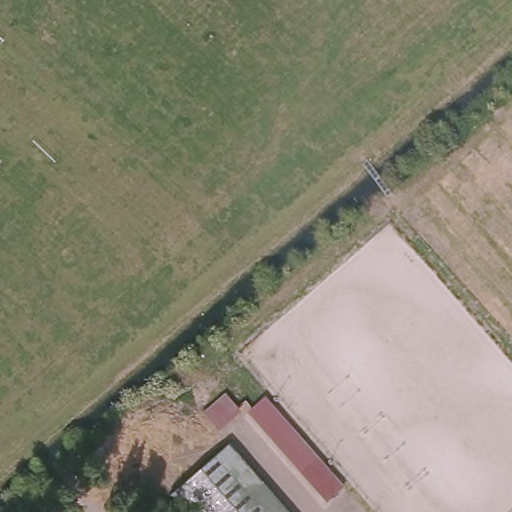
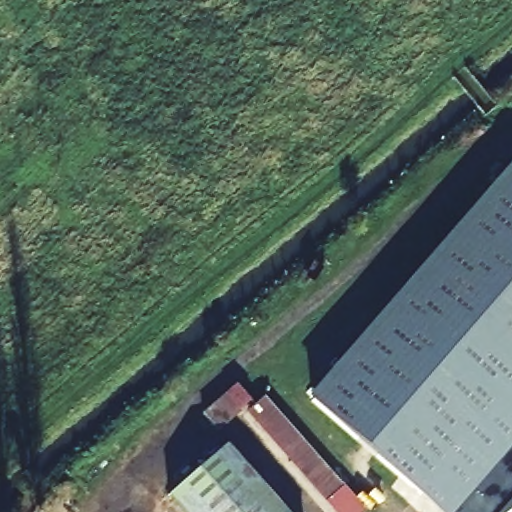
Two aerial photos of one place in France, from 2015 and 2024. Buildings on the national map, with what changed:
new [(511,163),(512,164),(512,509),(508,512),(438,512),(308,396),(511,163)]
new [(202,412),(238,382),(251,400),(217,429),(202,412)]
new [(335,512),(248,413),(264,398),(366,512),(365,512),(335,512)]
unchanged [(223,449),(282,512),(178,512),(168,501),(223,449)]

